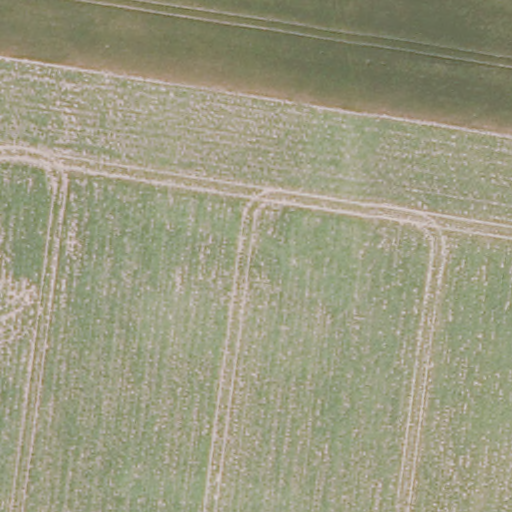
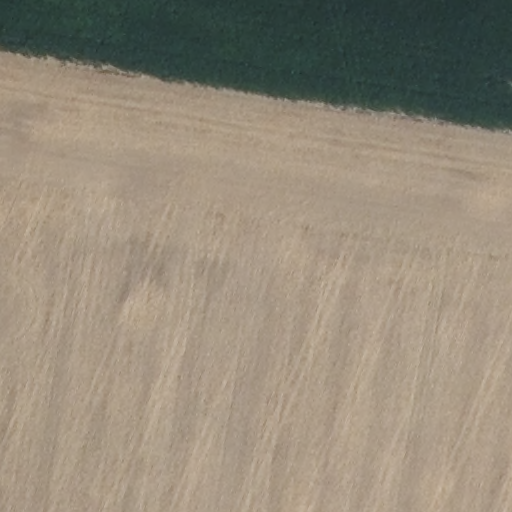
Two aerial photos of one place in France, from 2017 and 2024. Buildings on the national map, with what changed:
[]

